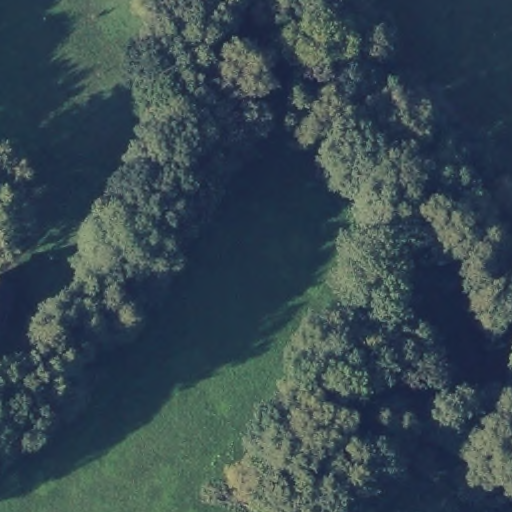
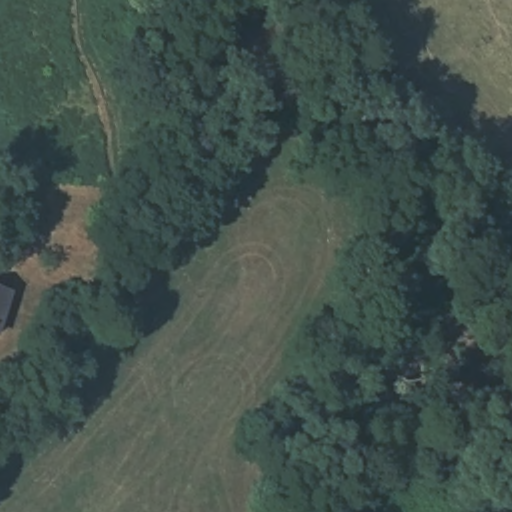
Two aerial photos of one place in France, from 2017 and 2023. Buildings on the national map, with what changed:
unchanged [(0,287),(7,290),(0,312),(0,287)]

